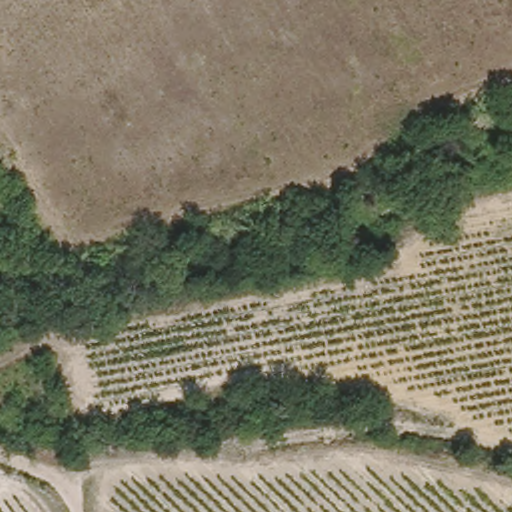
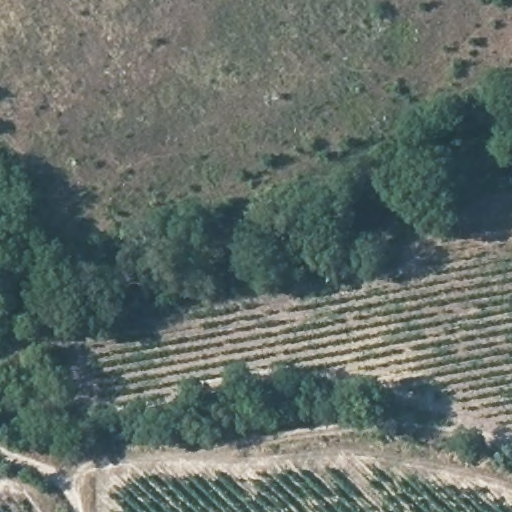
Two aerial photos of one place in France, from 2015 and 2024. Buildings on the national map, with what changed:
[]

